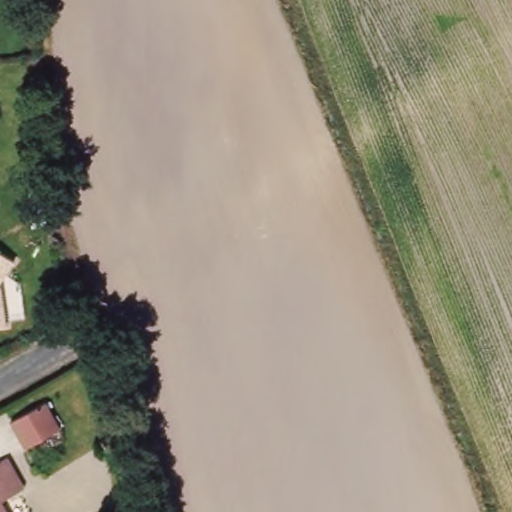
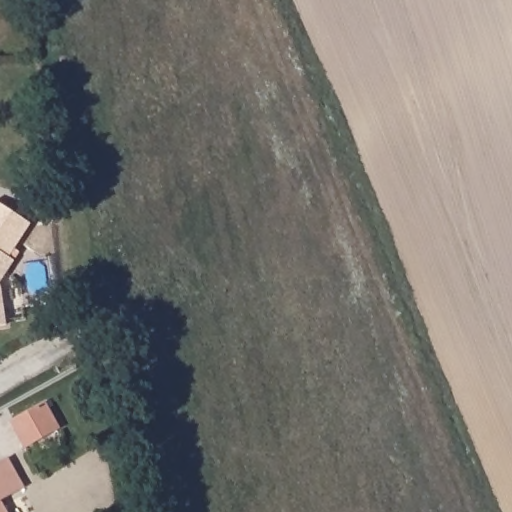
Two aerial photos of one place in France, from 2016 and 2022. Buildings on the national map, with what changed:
new [(30,224),(6,257),(0,252),(0,204),(30,224)]
unchanged [(16,265),(0,286),(0,252),(16,265)]
unchanged [(3,327),(0,327),(0,301),(3,327)]
unchanged [(63,429),(31,448),(15,422),(49,403),(63,429)]
unchanged [(13,457),(29,487),(7,500),(13,512),(0,512),(0,465),(13,457)]

